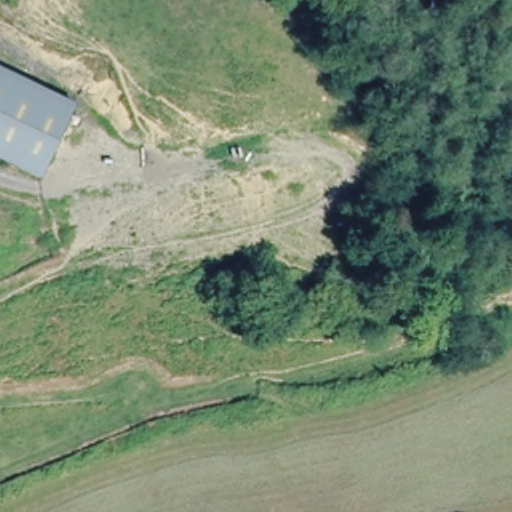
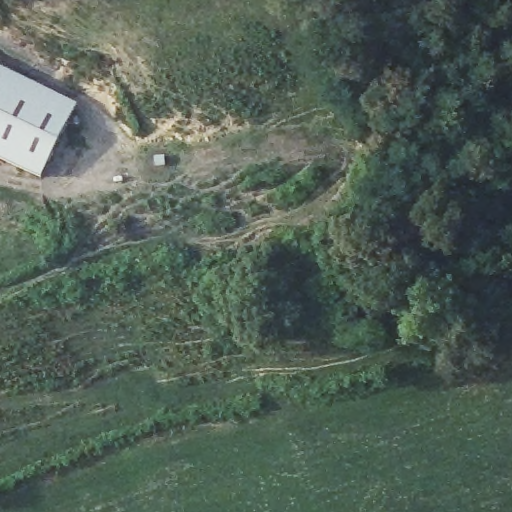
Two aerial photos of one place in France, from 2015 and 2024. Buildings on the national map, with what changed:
unchanged [(76,106),(39,182),(0,162),(0,68),(76,106)]

